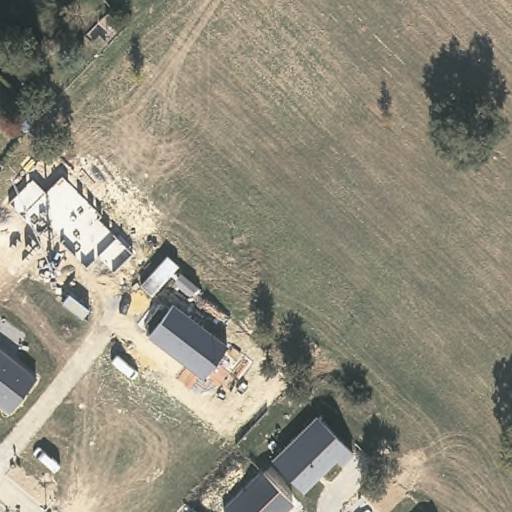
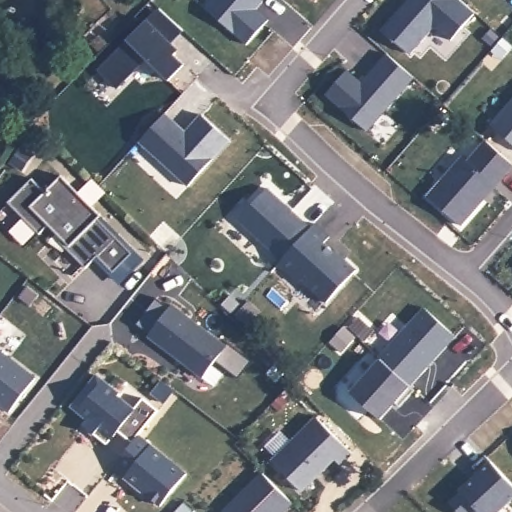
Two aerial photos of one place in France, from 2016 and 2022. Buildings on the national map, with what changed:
new [(269,19),(245,43),(206,6),(211,0),(262,0),(256,8),(269,19)]
new [(169,79),(149,60),(118,88),(99,69),(128,40),(148,19),(161,6),(183,30),(172,42),(179,50),(173,55),(183,65),(169,79)]
new [(413,79),(366,131),(325,97),(347,71),(361,84),(386,54),(413,79)]
new [(490,120),(512,95),(512,141),(490,120)]
new [(186,184),(139,140),(165,112),(187,133),(202,115),(228,140),(186,184)]
new [(462,225),(428,194),(462,155),(468,161),(486,140),(512,164),(512,169),(462,225)]
unchanged [(121,285),(95,258),(87,267),(61,241),(64,237),(51,224),(41,234),(9,201),(32,178),(46,191),(62,175),(101,215),(146,260),(121,285)]
new [(324,302),(279,263),(283,258),(240,220),(267,188),(311,226),(315,222),(330,235),(324,241),(356,268),(324,302)]
unchanged [(204,378),(149,337),(173,305),(228,346),(204,378)]
new [(409,387),(379,418),(350,390),(381,359),(426,310),(455,336),(409,387)]
unchanged [(0,405),(0,349),(37,377),(10,413),(0,405)]
unchanged [(135,442),(121,429),(108,444),(83,425),(87,420),(71,407),(98,373),(123,392),(121,396),(136,407),(145,397),(160,410),(135,442)]
unchanged [(343,465),(337,459),(304,491),(272,460),(317,416),(354,453),(343,465)]
new [(497,512),(482,512),(477,507),(472,512),(460,512),(450,500),(460,490),(478,472),(473,466),(484,456),(512,484),(512,497),(497,512)]
unchanged [(285,512),(224,512),(223,510),(261,472),(293,505),(285,512)]

